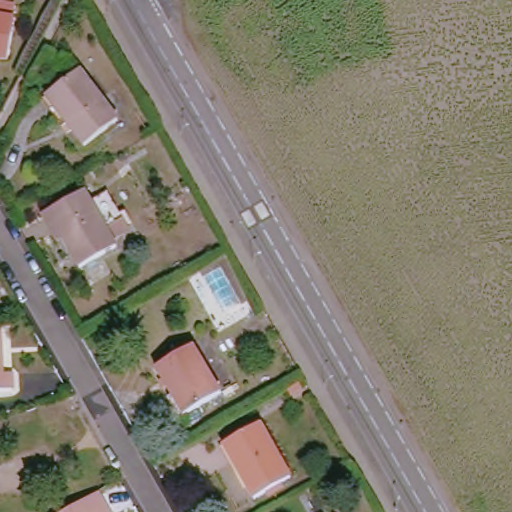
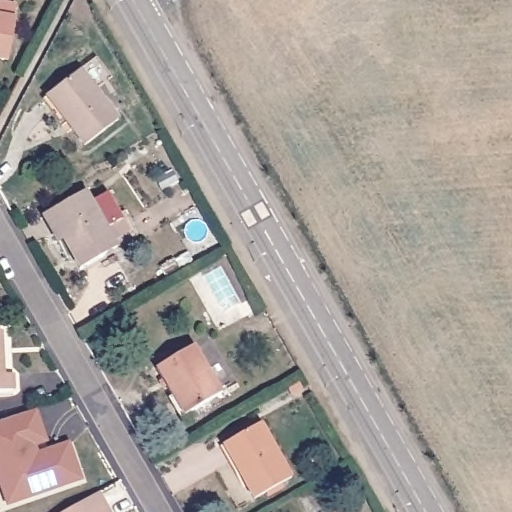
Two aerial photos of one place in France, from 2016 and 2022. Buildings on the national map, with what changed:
unchanged [(0,58),(0,15),(15,18),(9,59),(0,58)]
unchanged [(52,95),(85,69),(122,120),(90,144),(52,95)]
unchanged [(118,240),(122,246),(85,266),(71,240),(73,239),(57,210),(91,191),(96,202),(114,193),(130,220),(135,231),(118,240)]
unchanged [(6,331),(6,348),(5,349),(5,376),(19,375),(18,390),(0,391),(0,332),(6,331)]
unchanged [(159,367),(195,348),(221,393),(186,414),(159,367)]
new [(50,448),(70,441),(82,480),(7,505),(0,485),(0,423),(37,410),(50,448)]
unchanged [(243,475),(247,472),(231,445),(264,428),(294,482),(260,500),(243,475)]
unchanged [(108,512),(97,512),(105,507),(108,512)]

